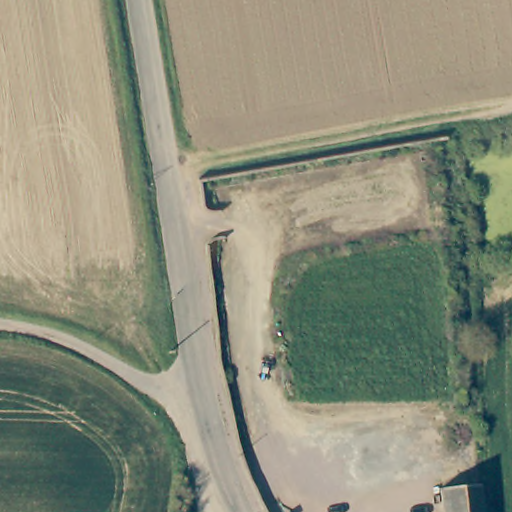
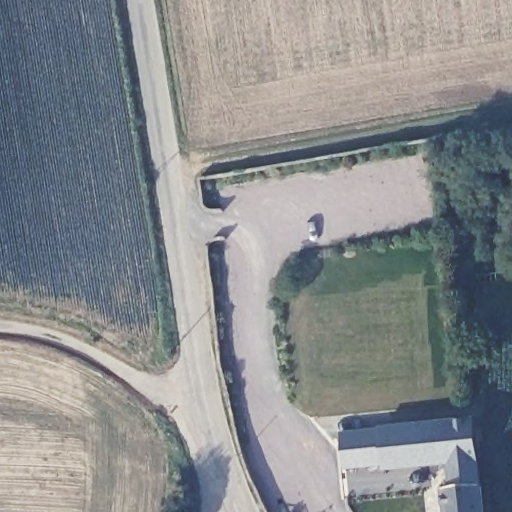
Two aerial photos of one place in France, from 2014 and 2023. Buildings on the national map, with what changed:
new [(450,487),(448,465),(383,472),(382,466),(345,469),(340,432),(377,426),(474,417),(480,483),(450,487)]
demolished [(320,438),(323,463),(258,471),(255,447),(320,438)]
demolished [(312,490),(310,472),(323,469),(325,489),(312,490)]
unchanged [(446,512),(445,487),(447,487),(475,485),(480,483),(482,512),(446,512)]

